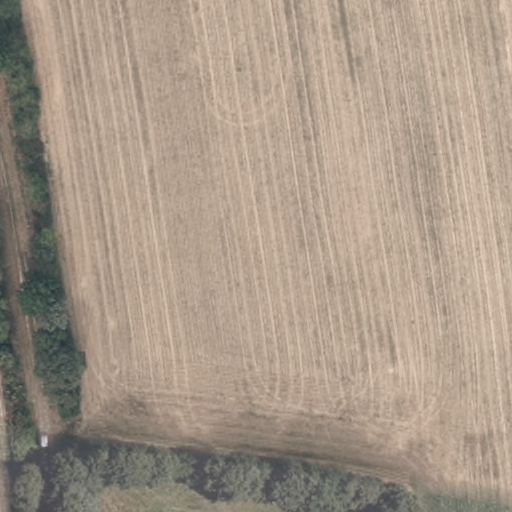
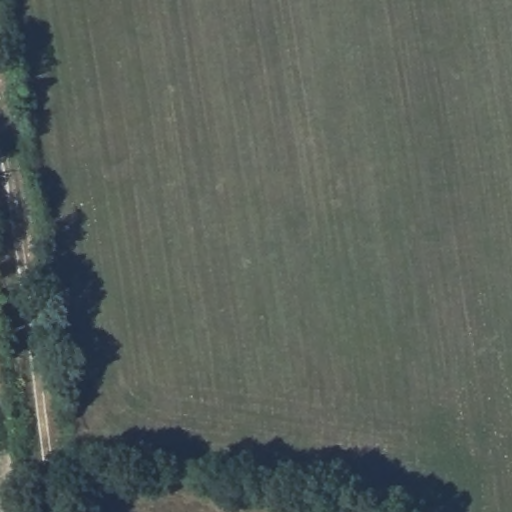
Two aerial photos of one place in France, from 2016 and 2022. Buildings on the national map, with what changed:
[]

